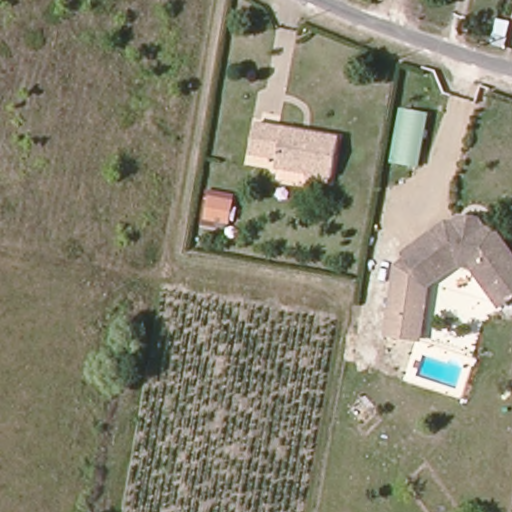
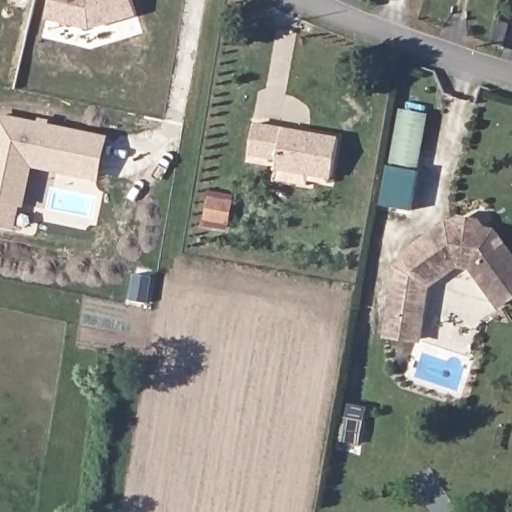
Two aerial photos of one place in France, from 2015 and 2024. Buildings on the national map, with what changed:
new [(139,15),(92,29),(47,18),(51,0),(134,0),(139,15)]
unchanged [(417,167),(390,163),(402,109),(428,112),(417,167)]
new [(20,206),(16,230),(0,228),(0,113),(111,135),(101,181),(34,167),(26,207),(20,206)]
unchanged [(280,171),(282,160),(280,159),(281,148),(251,142),(255,115),(339,129),(335,167),(313,164),(312,175),(280,171)]
unchanged [(229,220),(208,217),(212,197),(233,200),(229,220)]
unchanged [(500,293),(475,258),(457,255),(431,274),(408,245),(448,215),(460,216),(463,213),(477,215),(481,222),(493,223),(512,249),(512,284),(500,293)]
unchanged [(431,274),(457,255),(475,258),(500,293),(512,284),(512,300),(498,309),(470,271),(458,267),(427,287),(420,341),(386,337),(393,265),(403,259),(398,253),(408,245),(431,274)]

